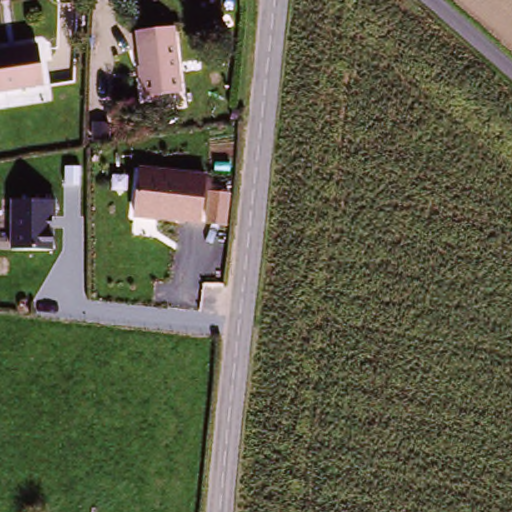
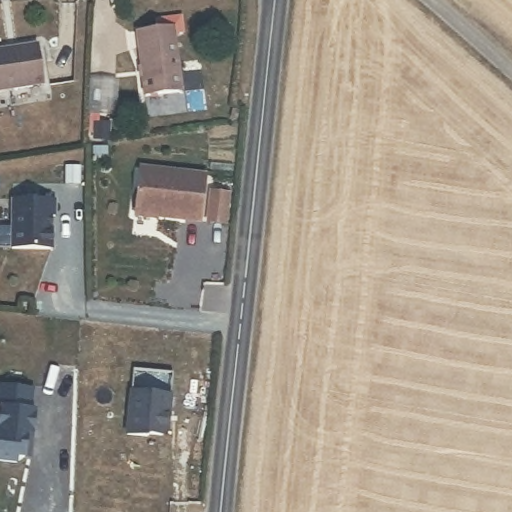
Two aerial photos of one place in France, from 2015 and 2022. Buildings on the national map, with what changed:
unchanged [(183,90),(145,97),(133,33),(170,25),(183,90)]
unchanged [(44,86),(0,94),(0,52),(36,46),(44,86)]
unchanged [(94,127),(109,126),(109,141),(94,141),(94,127)]
unchanged [(210,179),(207,223),(138,217),(142,171),(210,179)]
unchanged [(61,201),(62,219),(60,219),(59,250),(19,251),(20,201),(61,201)]
new [(0,421),(2,409),(0,408),(0,386),(32,390),(30,411),(34,412),(31,434),(27,434),(24,457),(15,457),(15,464),(0,462),(0,421)]
new [(132,390),(171,394),(168,430),(162,435),(150,433),(147,436),(127,434),(132,390)]

